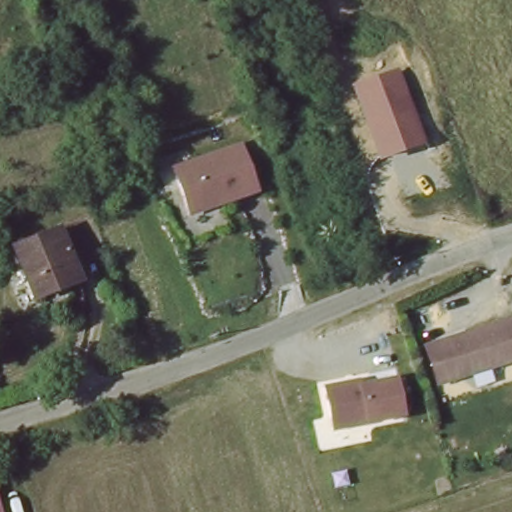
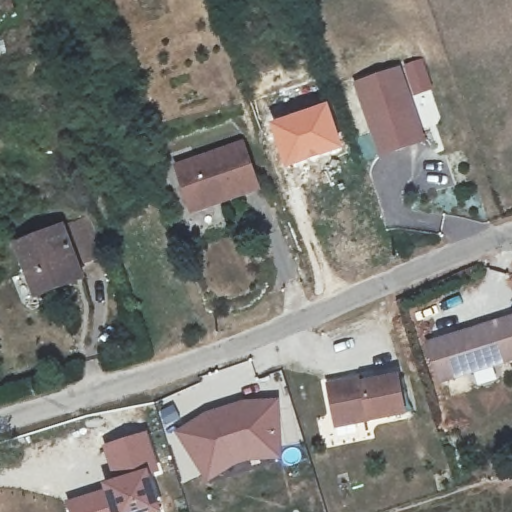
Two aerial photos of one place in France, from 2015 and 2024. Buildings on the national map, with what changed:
new [(421,62),(430,89),(416,94),(407,66),(421,62)]
new [(379,158),(353,82),(399,67),(425,143),(379,158)]
new [(325,109),(340,147),(290,167),(275,126),(325,109)]
unchanged [(240,145),(257,193),(190,218),(172,168),(240,145)]
unchanged [(39,291),(33,293),(16,243),(22,241),(63,226),(84,218),(96,253),(77,260),(81,273),(39,291)]
unchanged [(467,375),(441,382),(436,383),(425,344),(428,344),(464,333),(512,320),(512,361),(467,375)]
unchanged [(404,418),(366,424),(331,429),(324,388),(358,384),(397,377),(404,418)]
new [(250,461),(232,467),(207,481),(177,434),(205,414),(243,401),(278,400),(281,460),(250,461)]
new [(101,482),(112,479),(101,444),(148,430),(161,473),(152,476),(152,478),(158,502),(161,512),(67,512),(64,501),(103,489),(101,482)]
unchanged [(4,512),(0,512),(0,496),(4,512)]

